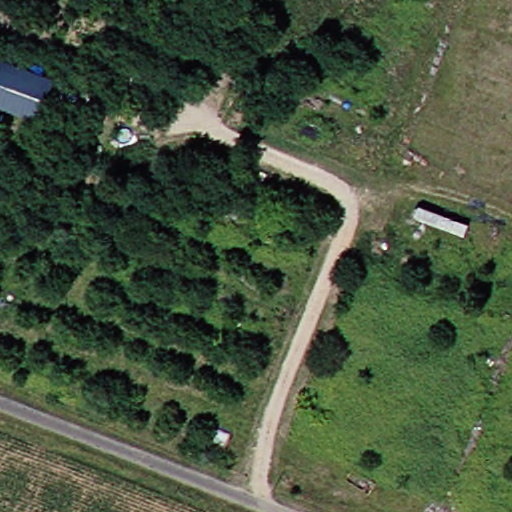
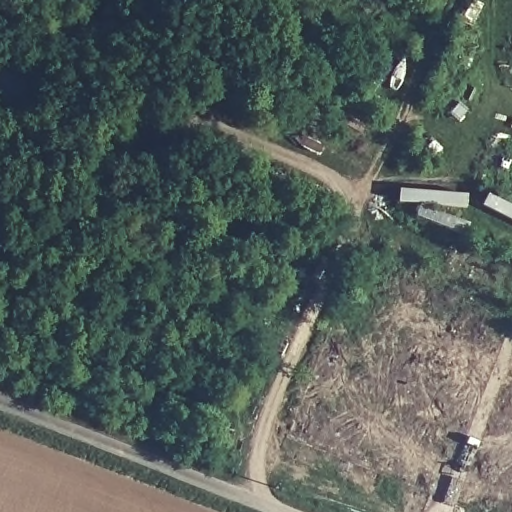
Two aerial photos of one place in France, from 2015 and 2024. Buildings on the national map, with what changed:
new [(39,120),(0,107),(0,61),(53,79),(39,120)]

